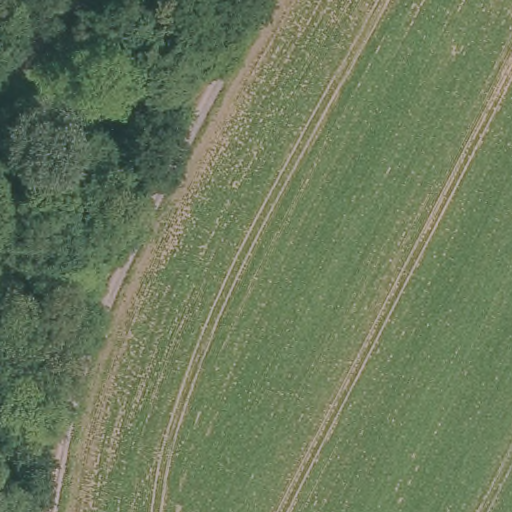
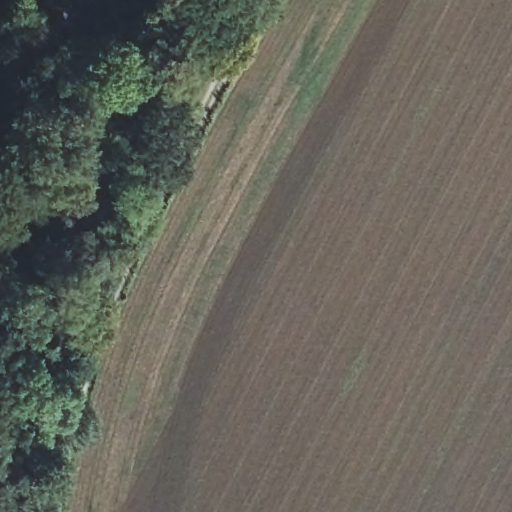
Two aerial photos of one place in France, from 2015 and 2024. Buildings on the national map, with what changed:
unchanged [(60,55),(82,83),(35,113),(17,86),(60,55)]

